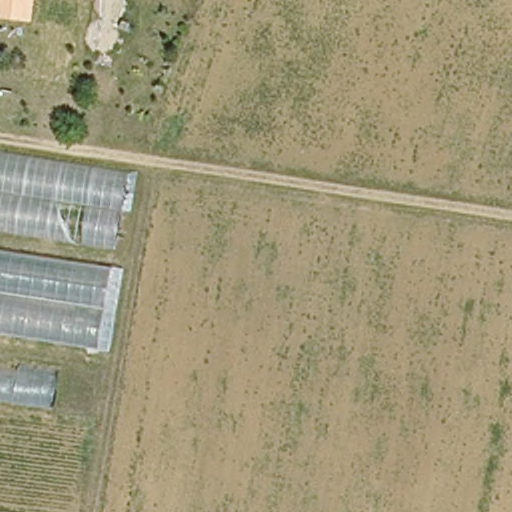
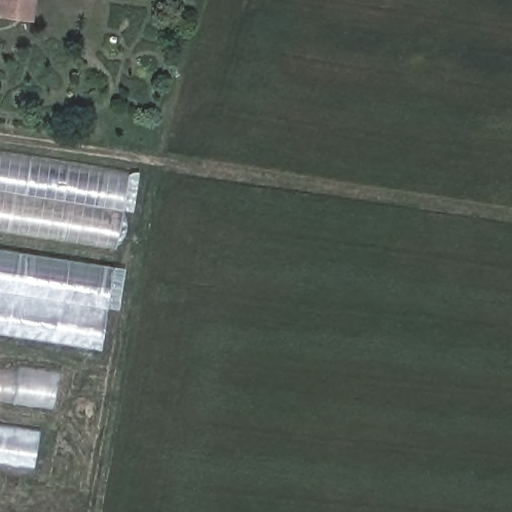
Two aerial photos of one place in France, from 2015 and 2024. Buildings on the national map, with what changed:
unchanged [(30,22),(0,17),(0,0),(34,0),(30,22)]
unchanged [(135,173),(121,249),(0,230),(0,151),(135,173)]
unchanged [(0,334),(0,250),(123,270),(109,352),(0,334)]
unchanged [(53,406),(0,399),(0,369),(57,376),(53,406)]
new [(39,429),(33,468),(0,464),(0,424),(39,429)]

